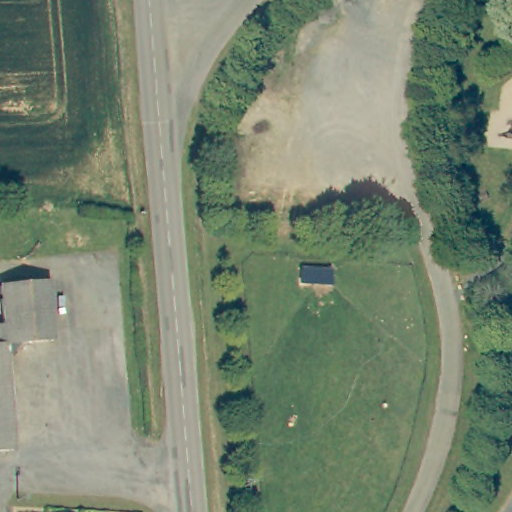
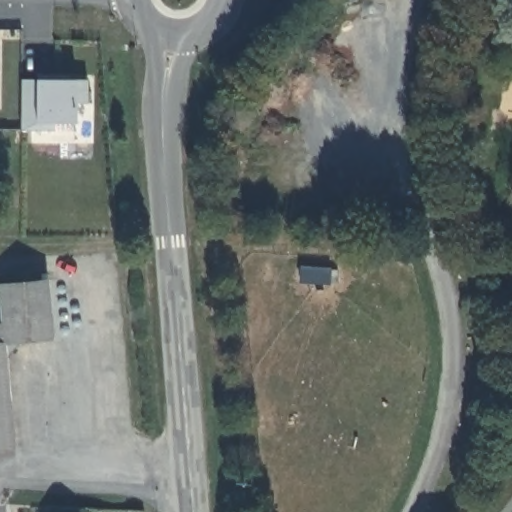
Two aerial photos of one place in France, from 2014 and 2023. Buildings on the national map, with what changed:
new [(77,81),(88,82),(88,105),(76,106),(77,125),(56,124),(55,132),(21,131),(23,80),(77,81)]
new [(330,286),(299,284),(301,266),(331,268),(330,286)]
unchanged [(0,287),(0,282),(46,277),(53,336),(20,340),(6,356),(15,445),(0,447),(0,320),(3,320),(0,287)]

